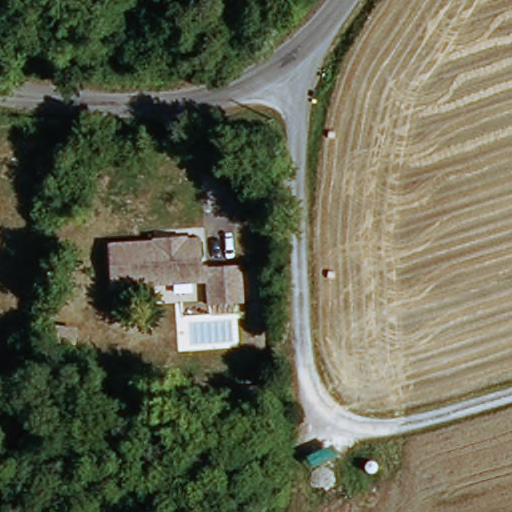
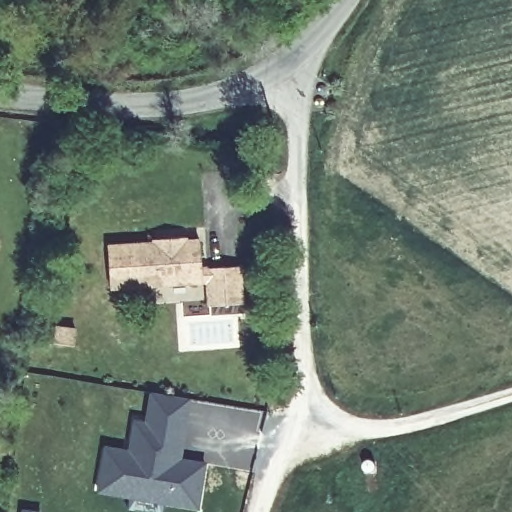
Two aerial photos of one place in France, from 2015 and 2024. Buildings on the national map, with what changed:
unchanged [(202,282),(111,292),(106,250),(163,245),(162,238),(183,235),(185,242),(196,244),(202,282)]
unchanged [(240,302),(208,307),(203,267),(234,265),(240,302)]
new [(105,445),(130,448),(134,420),(146,421),(149,402),(150,391),(188,396),(186,407),(178,456),(205,460),(197,505),(165,500),(98,490),(99,483),(104,451),(105,445)]
new [(43,510),(43,512),(25,512),(25,508),(43,510)]

